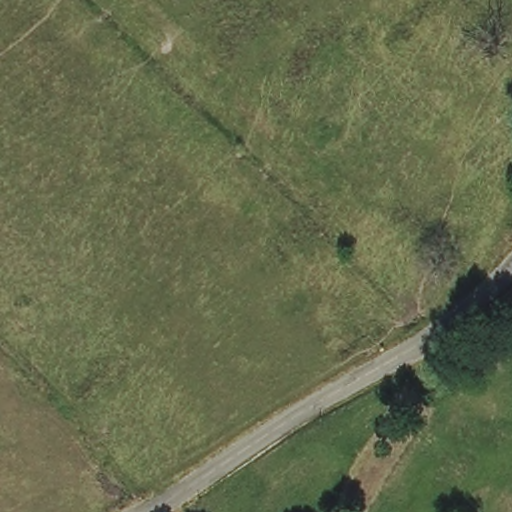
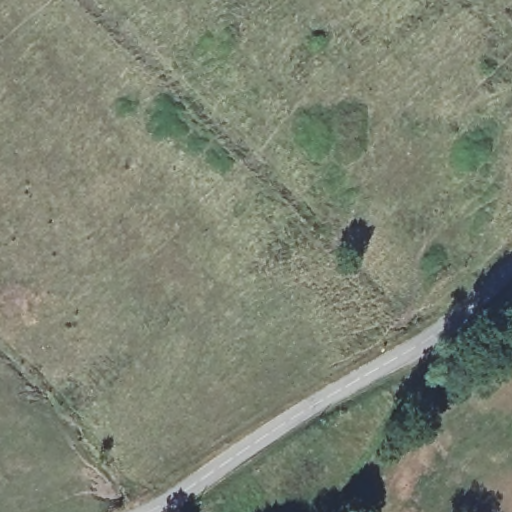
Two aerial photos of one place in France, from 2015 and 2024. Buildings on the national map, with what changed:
[]

